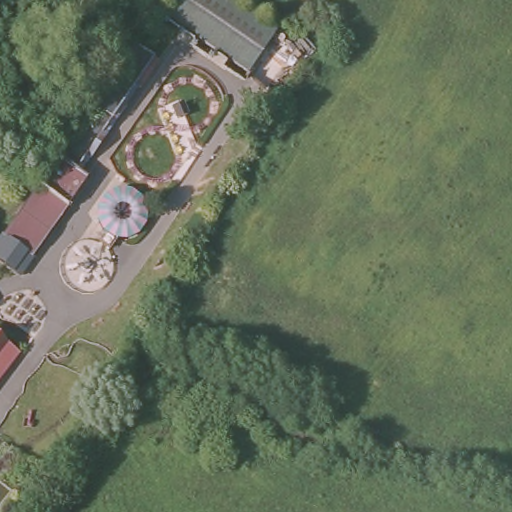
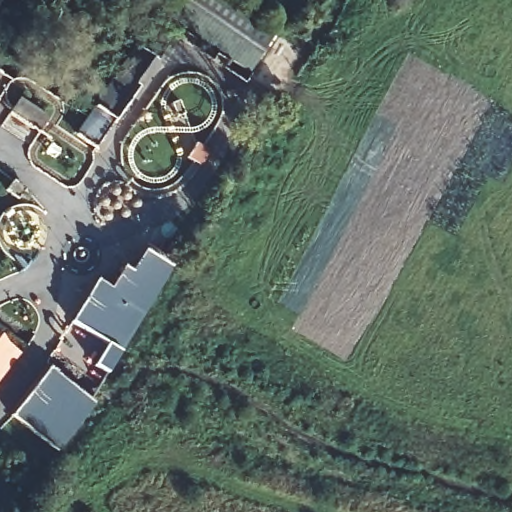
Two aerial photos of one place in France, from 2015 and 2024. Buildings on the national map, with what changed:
unchanged [(246,75),(163,20),(177,0),(221,0),(273,34),(246,75)]
demolished [(58,161),(135,46),(153,58),(74,171),(85,180),(19,276),(0,263),(0,241),(39,185),(58,161)]
new [(104,371),(92,363),(105,342),(70,321),(96,281),(109,288),(123,268),(131,273),(144,254),(171,270),(104,371)]
demolished [(0,366),(0,335),(15,347),(0,366)]
new [(0,373),(0,342),(15,353),(0,373)]
new [(91,399),(58,451),(12,415),(48,366),(91,399)]

